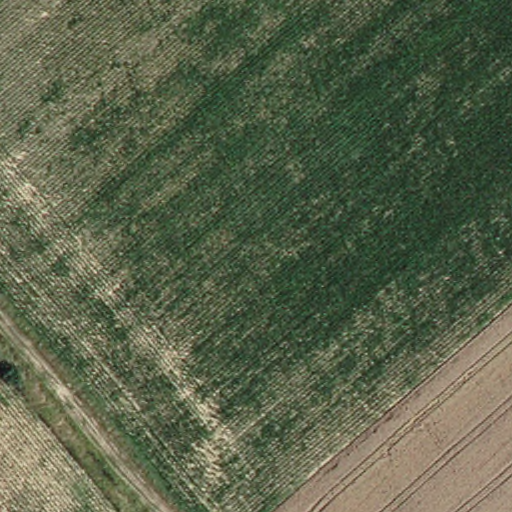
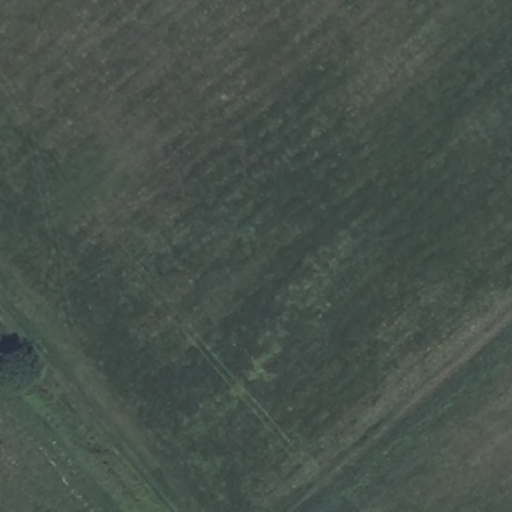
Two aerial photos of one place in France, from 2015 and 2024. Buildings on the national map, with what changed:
[]

